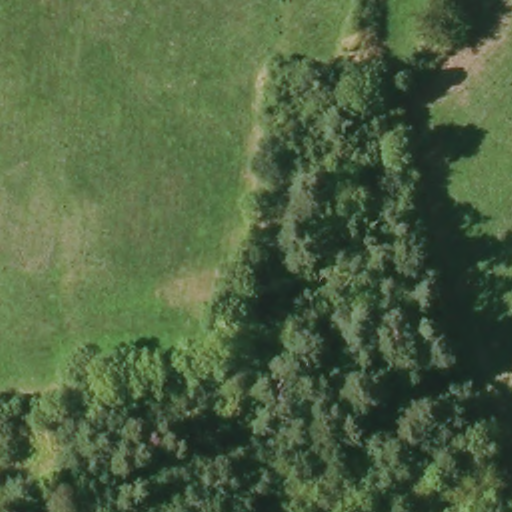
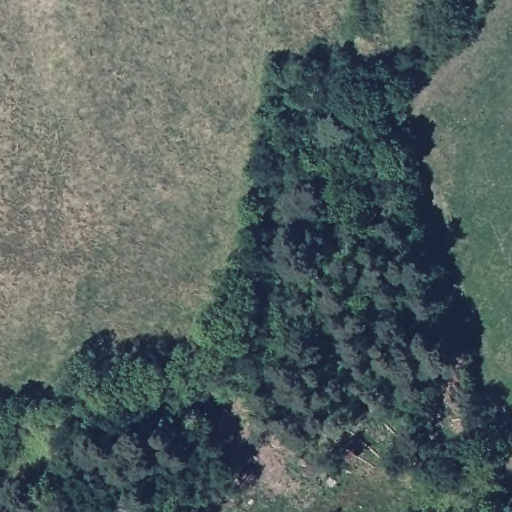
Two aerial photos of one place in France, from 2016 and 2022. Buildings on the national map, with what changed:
unchanged [(32,500),(41,512),(18,512),(32,500)]

